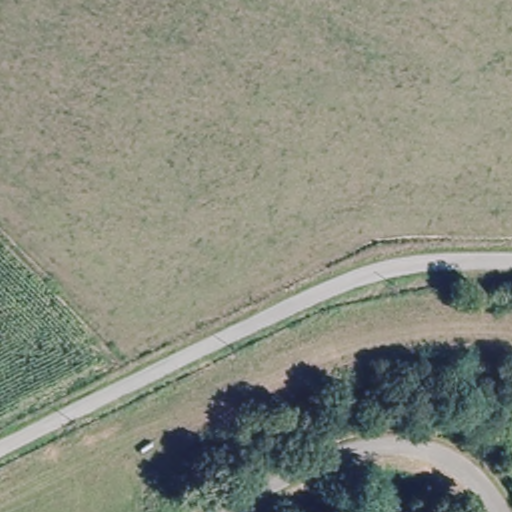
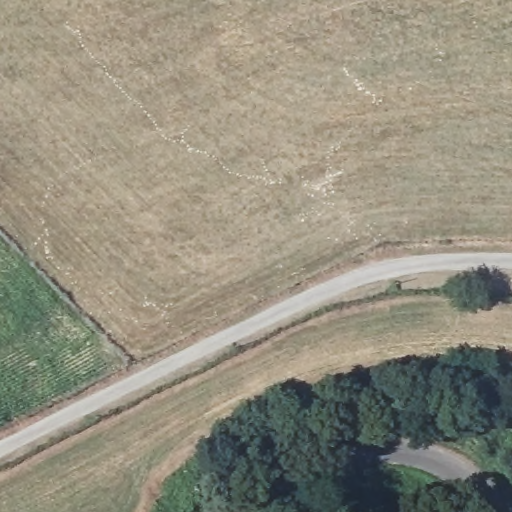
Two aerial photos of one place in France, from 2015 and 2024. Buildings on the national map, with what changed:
[]

